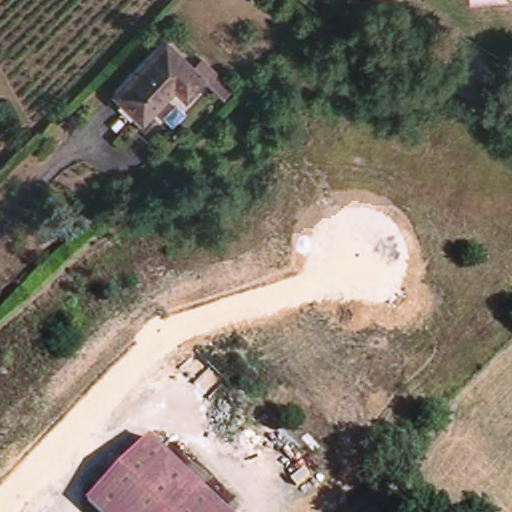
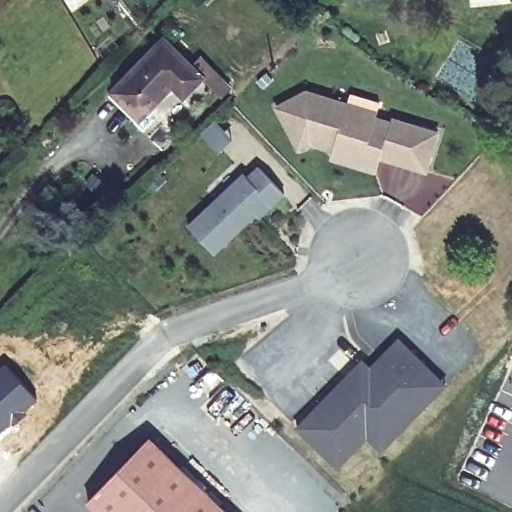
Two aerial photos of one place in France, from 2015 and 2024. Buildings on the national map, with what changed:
unchanged [(203,78),(182,98),(172,89),(139,122),(111,94),(163,40),(203,78)]
unchanged [(214,69),(222,76),(211,87),(204,79),(214,69)]
new [(332,151),(311,144),(297,151),(274,107),(306,90),(378,111),(376,117),(392,120),(393,117),(438,131),(426,173),(378,160),(373,174),(329,160),(332,151)]
new [(243,172),(246,176),(258,167),(285,195),(260,219),(257,215),(215,254),(188,225),(243,172)]
new [(295,428),(363,359),(370,366),(399,337),(446,386),(382,452),(366,438),(338,468),(295,428)]
new [(5,362),(37,401),(0,432),(0,366),(5,362)]
unchanged [(86,502),(147,439),(221,512),(97,512),(86,502)]

